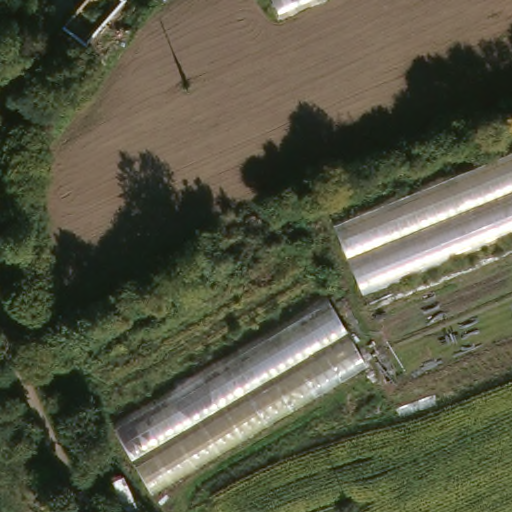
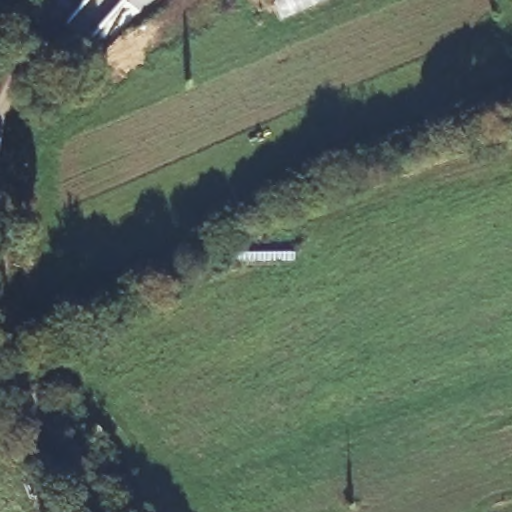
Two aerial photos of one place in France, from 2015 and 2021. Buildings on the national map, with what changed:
unchanged [(273,0),(311,0),(280,14),(273,0)]
demolished [(333,225),(512,153),(512,244),(363,304),(333,225)]
demolished [(369,318),(512,258),(512,345),(396,391),(369,318)]
demolished [(364,368),(154,501),(112,433),(326,302),(364,368)]
unchanged [(119,512),(106,484),(125,475),(142,512),(119,512)]

